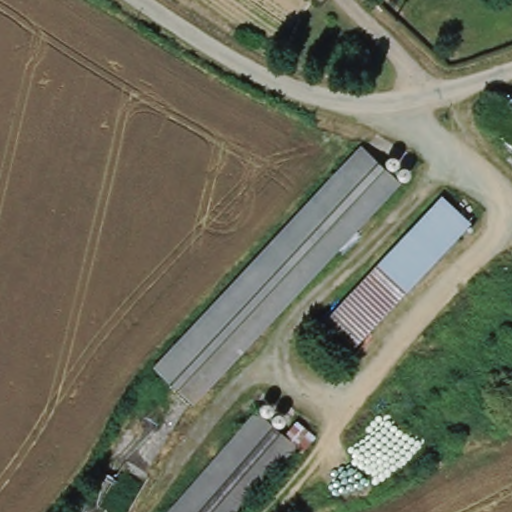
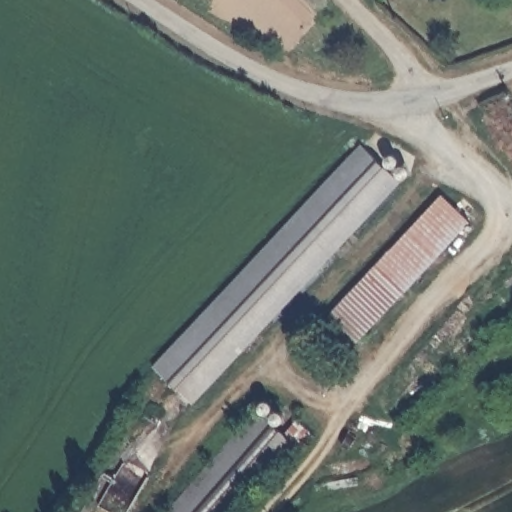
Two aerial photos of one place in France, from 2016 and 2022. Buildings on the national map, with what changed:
unchanged [(193,403),(158,370),(362,152),(398,185),(193,403)]
unchanged [(474,227),(344,364),(311,332),(441,196),(474,227)]
unchanged [(284,434),(297,419),(315,435),(301,451),(295,445),(234,512),(169,512),(260,412),(284,434)]

